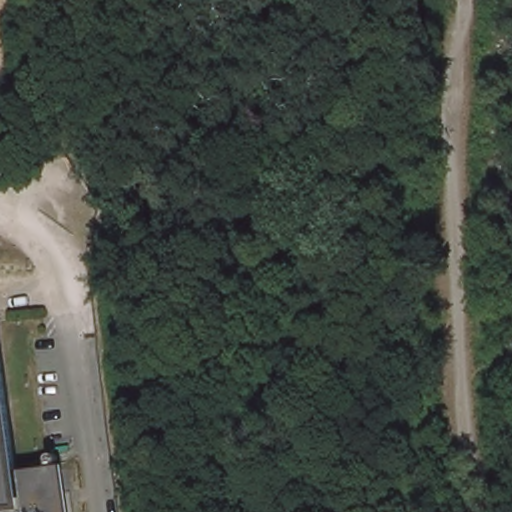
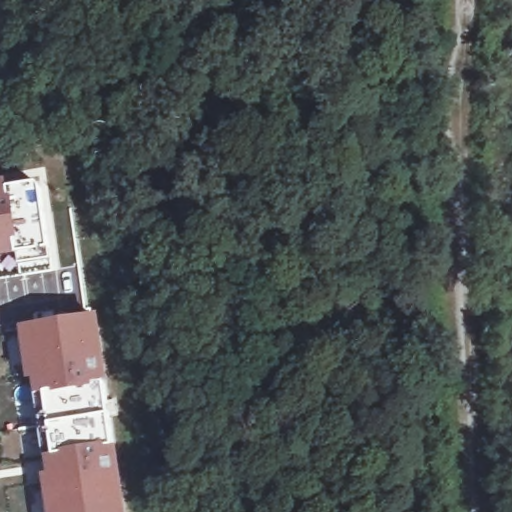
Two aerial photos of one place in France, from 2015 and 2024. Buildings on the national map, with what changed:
new [(9,190),(40,188),(48,249),(50,262),(16,263),(0,266),(0,181),(6,180),(9,190)]
demolished [(66,464),(73,512),(0,512),(0,312),(23,470),(66,464)]
new [(111,415),(125,512),(60,512),(50,423),(46,395),(31,398),(23,330),(101,318),(111,415)]

